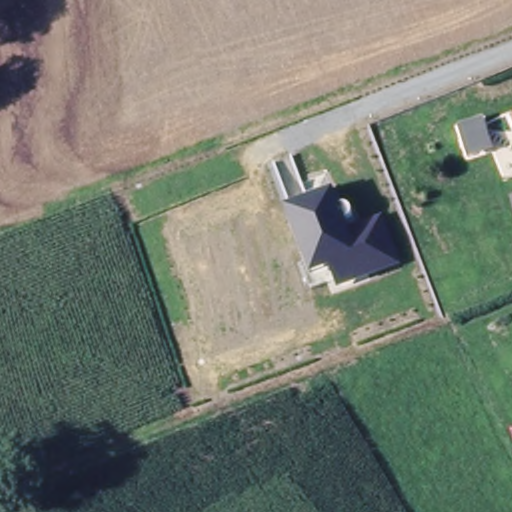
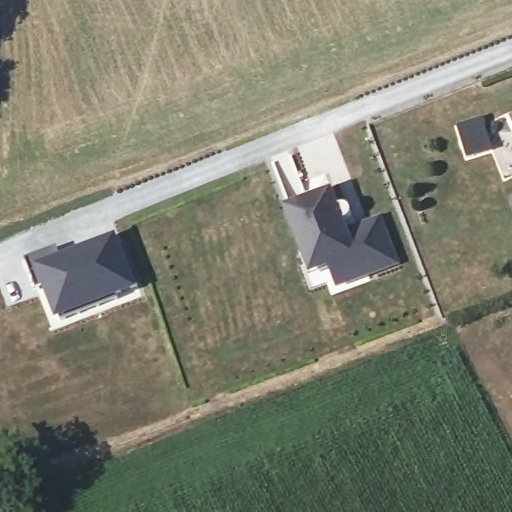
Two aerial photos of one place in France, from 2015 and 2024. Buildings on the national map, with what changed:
unchanged [(489,153),(462,159),(451,126),(479,117),(489,153)]
unchanged [(285,211),(334,190),(340,207),(345,207),(350,208),(353,215),(350,220),(345,224),(348,228),(384,216),(401,264),(336,289),(330,269),(310,277),(285,211)]
unchanged [(512,203),(512,244),(500,207),(512,203)]
new [(79,311),(59,319),(46,283),(36,287),(26,257),(57,245),(63,259),(114,240),(115,243),(121,241),(137,283),(115,291),(117,298),(79,311)]

